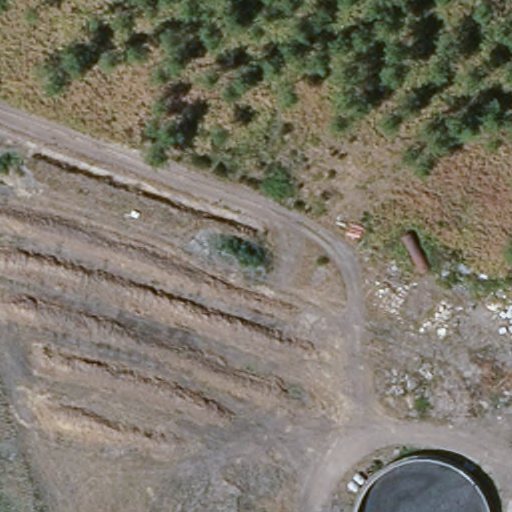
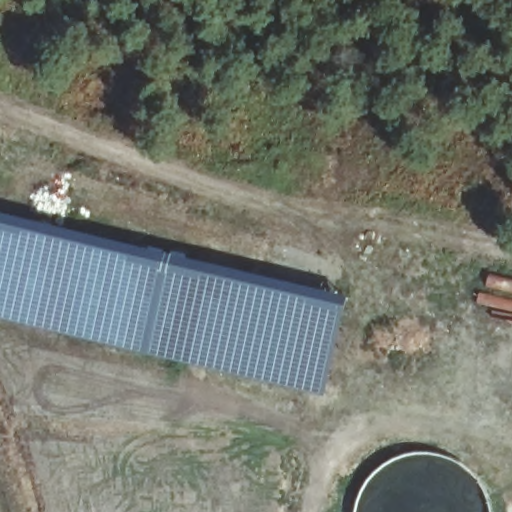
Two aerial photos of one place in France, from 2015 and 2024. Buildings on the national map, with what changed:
new [(0,319),(0,216),(167,256),(141,352),(0,319)]
new [(141,352),(167,256),(349,297),(325,396),(141,352)]

